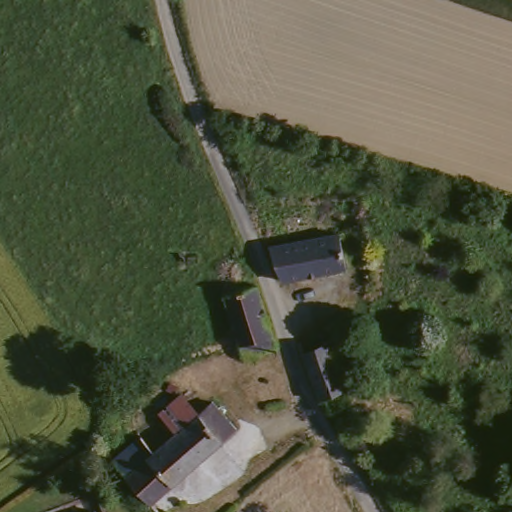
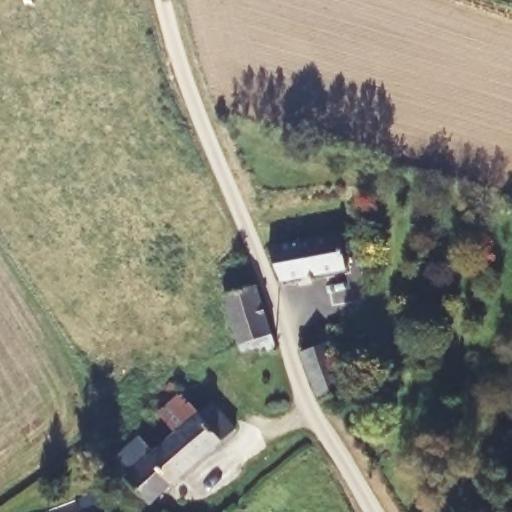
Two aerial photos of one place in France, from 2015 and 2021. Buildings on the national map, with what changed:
unchanged [(289,279),(277,244),(345,231),(351,264),(351,266),(289,279)]
unchanged [(262,278),(277,337),(245,347),(226,286),(260,275),(262,278)]
unchanged [(340,387),(344,400),(338,403),(330,405),(307,340),(307,337),(332,328),(351,384),(340,387)]
unchanged [(140,428),(186,389),(201,408),(157,448),(144,433),(140,428)]
unchanged [(114,456),(144,433),(157,448),(201,408),(215,396),(239,425),(151,501),(114,456)]
unchanged [(99,512),(85,512),(98,507),(99,512)]

